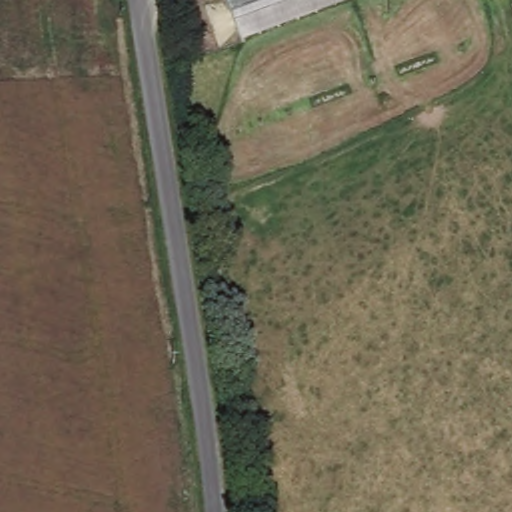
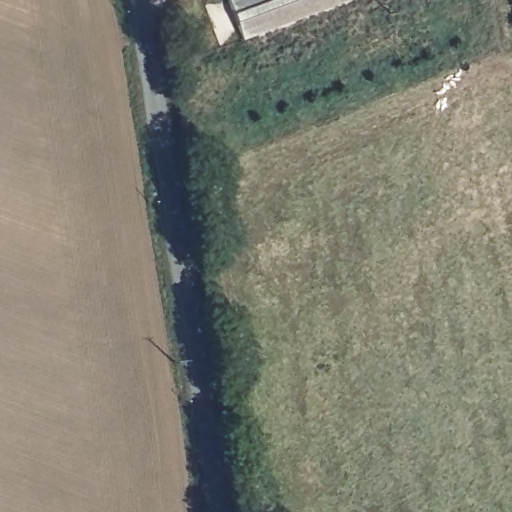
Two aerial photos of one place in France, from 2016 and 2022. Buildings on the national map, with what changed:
unchanged [(297,25),(244,46),(226,4),(234,0),(355,0),(297,25)]

